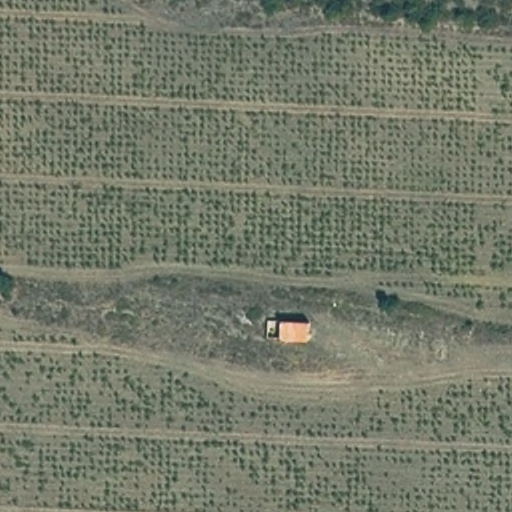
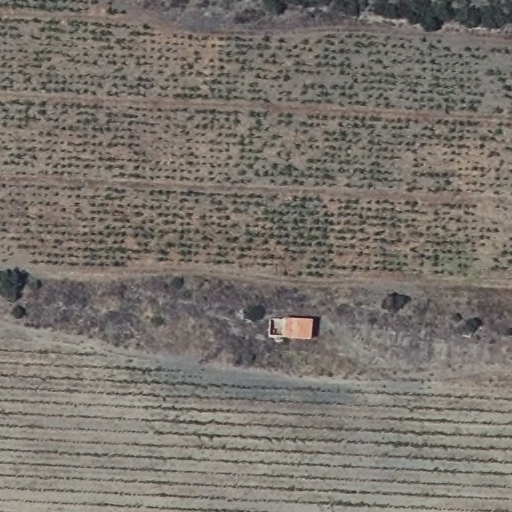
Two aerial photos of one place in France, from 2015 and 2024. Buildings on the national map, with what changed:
unchanged [(315,319),(313,335),(282,334),(282,314),(315,319)]

